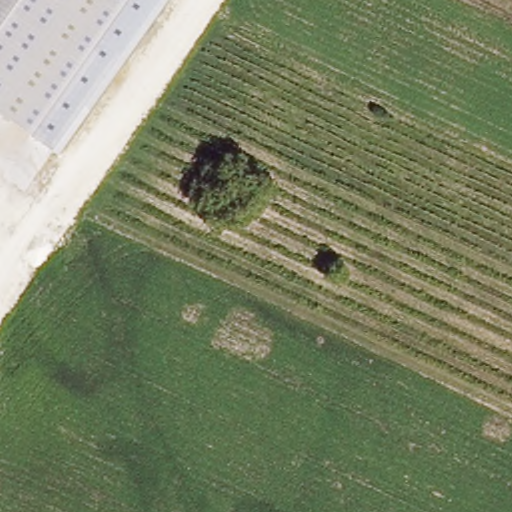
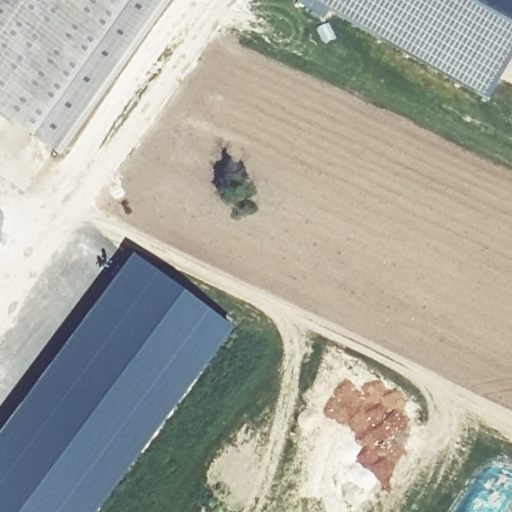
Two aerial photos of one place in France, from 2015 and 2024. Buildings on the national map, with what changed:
unchanged [(0,0),(134,0),(34,138),(0,114),(0,0)]
new [(324,18),(295,3),(297,0),(512,0),(512,54),(485,101),(328,11),(324,18)]
new [(182,291),(15,512),(0,512),(0,428),(131,253),(182,291)]
new [(234,326),(185,394),(96,512),(15,512),(182,291),(234,326)]

